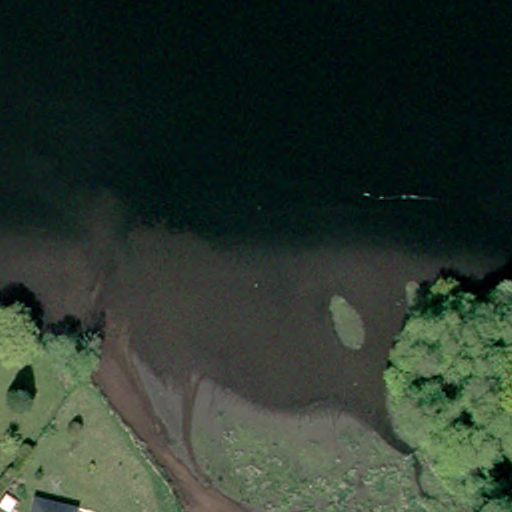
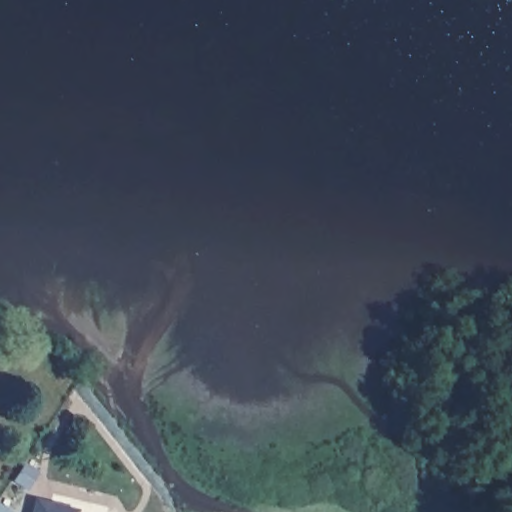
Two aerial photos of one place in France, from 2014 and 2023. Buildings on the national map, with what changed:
unchanged [(57,512),(29,512),(31,506),(57,512)]

